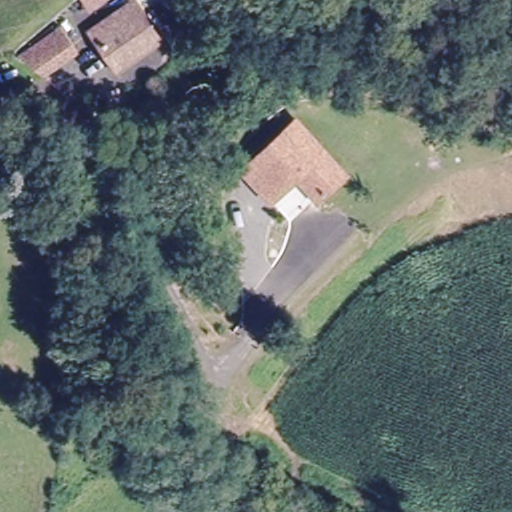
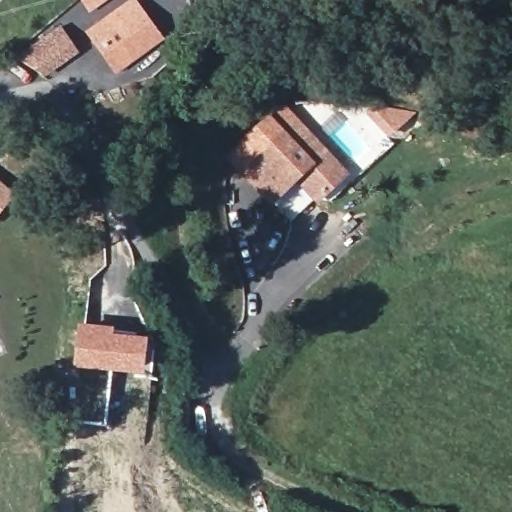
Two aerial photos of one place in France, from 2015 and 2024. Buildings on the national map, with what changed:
unchanged [(129,0),(131,0),(156,35),(113,66),(86,30),(129,0)]
unchanged [(106,1),(105,0),(109,0),(106,1)]
unchanged [(61,28),(74,46),(40,68),(20,57),(61,28)]
unchanged [(306,123),(350,178),(326,197),(307,174),(272,201),(248,170),(306,123)]
new [(0,214),(0,181),(16,194),(0,214)]
new [(77,322),(116,326),(115,332),(150,337),(146,376),(73,368),(77,322)]

